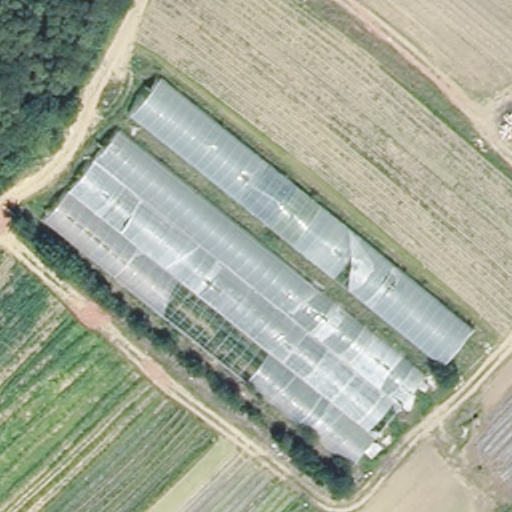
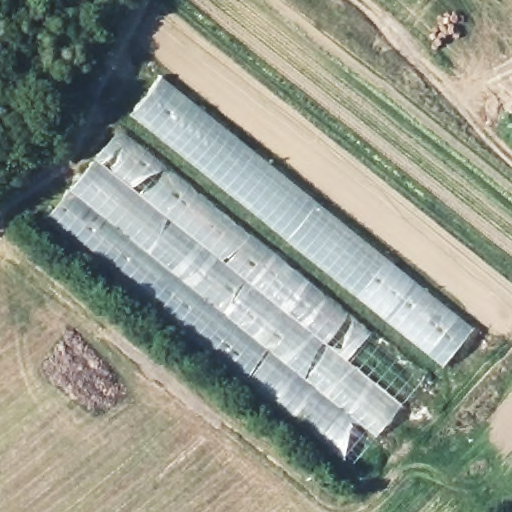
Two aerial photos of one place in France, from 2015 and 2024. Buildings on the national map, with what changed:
unchanged [(149,94),(163,78),(473,328),(446,366),(133,114),(149,94)]
unchanged [(423,376),(353,463),(43,211),(114,128),(423,376)]

